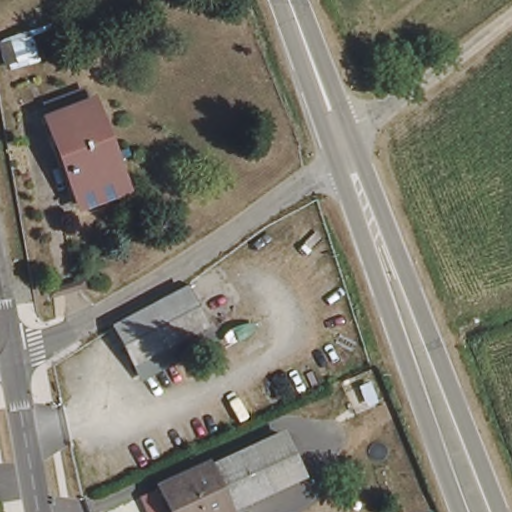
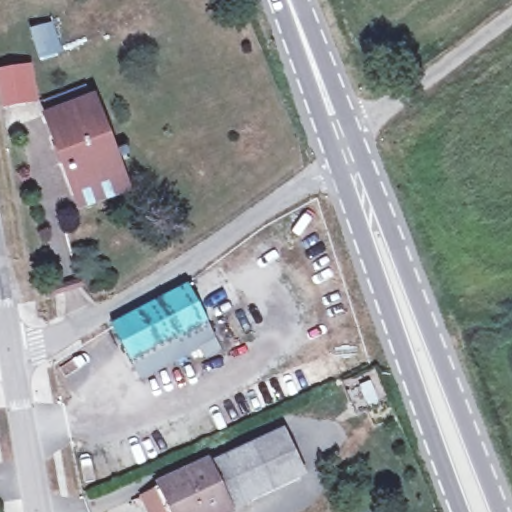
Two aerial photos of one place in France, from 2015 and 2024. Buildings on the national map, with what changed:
new [(30,95),(0,101),(0,71),(25,66),(30,95)]
unchanged [(130,186),(84,205),(77,188),(47,115),(88,98),(117,168),(122,166),(130,186)]
unchanged [(112,313),(183,275),(210,326),(193,335),(194,338),(140,367),(112,313)]
unchanged [(169,478),(175,475),(268,433),(288,480),(219,512),(185,512),(169,478)]
unchanged [(60,468),(72,466),(76,486),(65,488),(60,468)]

